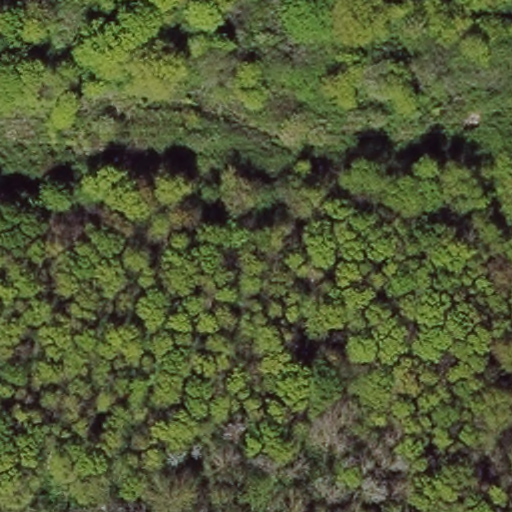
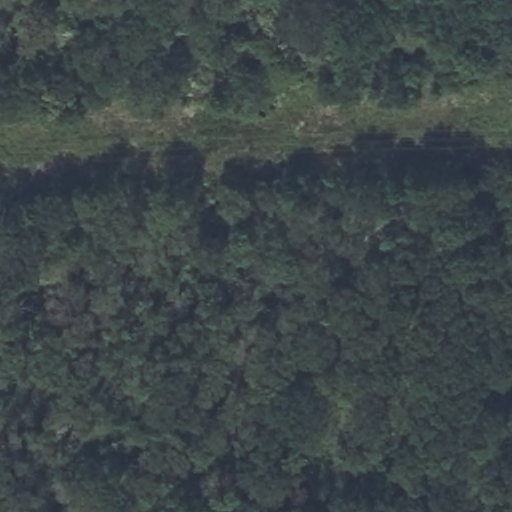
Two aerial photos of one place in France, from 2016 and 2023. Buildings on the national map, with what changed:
unchanged [(497,428),(475,426),(476,378),(503,377),(497,428)]

